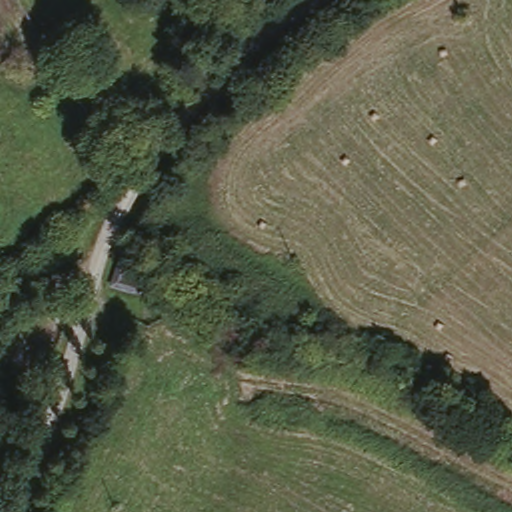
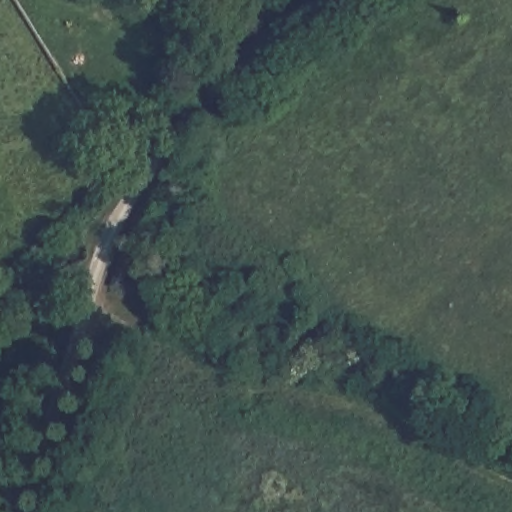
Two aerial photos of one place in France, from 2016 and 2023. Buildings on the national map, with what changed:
unchanged [(135,251),(127,276),(140,280),(137,293),(109,287),(121,246),(135,251)]

